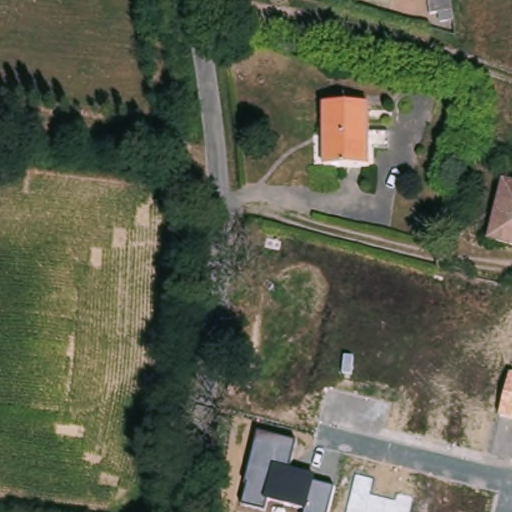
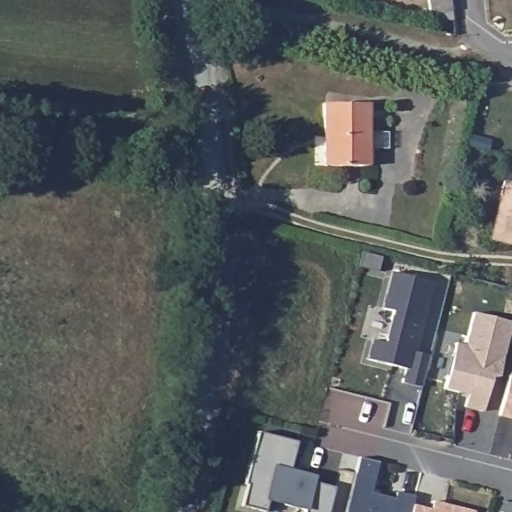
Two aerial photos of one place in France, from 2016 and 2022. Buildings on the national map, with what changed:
unchanged [(431,8),(430,0),(450,0),(450,4),(431,8)]
unchanged [(366,105),(367,168),(324,168),(323,106),(366,105)]
unchanged [(500,188),(512,191),(512,244),(499,241),(503,221),(493,220),(500,188)]
new [(373,340),(385,344),(393,312),(382,309),(392,272),(433,283),(416,352),(430,356),(422,388),(403,383),(406,369),(368,360),(373,340)]
new [(456,343),(466,346),(475,313),(512,323),(512,325),(499,377),(493,376),(484,411),(465,407),(468,395),(445,389),(456,343)]
unchanged [(510,375),(512,375),(512,421),(498,417),(510,375)]
unchanged [(306,511),(268,501),(265,512),(263,512),(245,506),(250,485),(245,484),(257,434),(295,442),(289,468),(316,477),(314,484),(333,489),(327,512),(306,512),(306,511)]
new [(433,502),(442,504),(474,512),(346,512),(355,473),(375,478),(371,493),(395,500),(397,493),(415,497),(412,506),(431,510),(433,502)]

